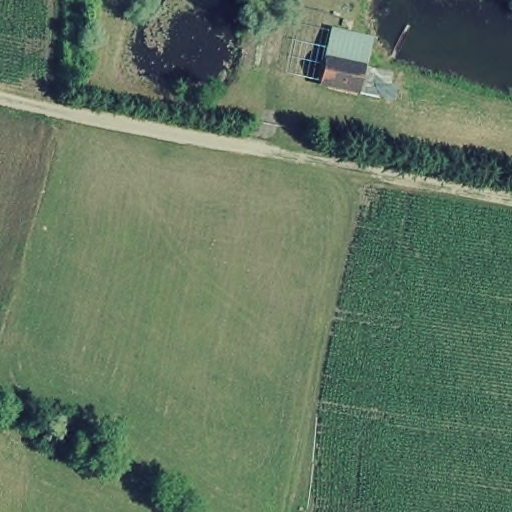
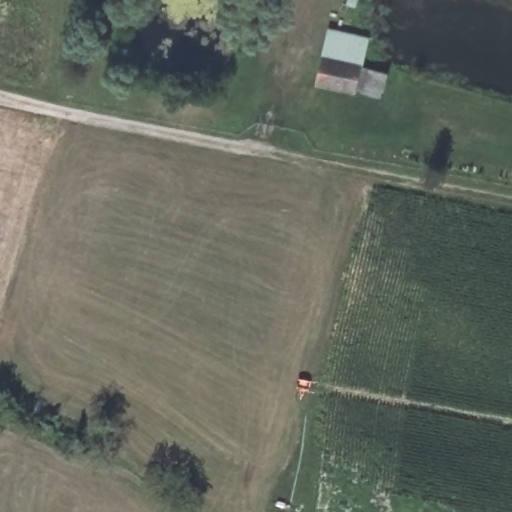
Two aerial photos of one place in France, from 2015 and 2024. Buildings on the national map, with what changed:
unchanged [(354,96),(312,85),(323,28),(364,36),(354,96)]

